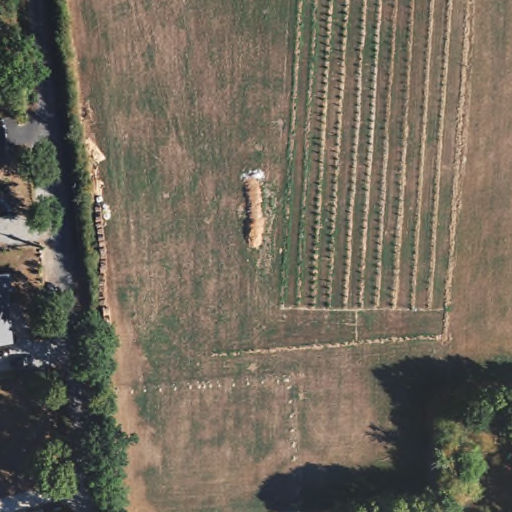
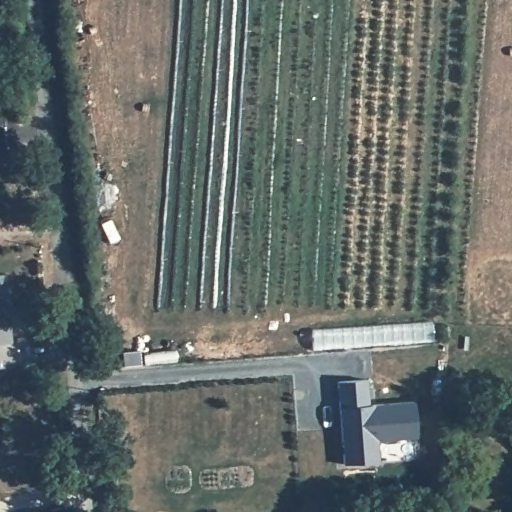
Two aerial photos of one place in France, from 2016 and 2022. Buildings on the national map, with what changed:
unchanged [(9,276),(10,292),(6,293),(10,344),(0,344),(0,276),(9,276)]
new [(337,381),(367,380),(369,406),(414,402),(416,437),(376,440),(379,462),(344,465),(337,381)]

